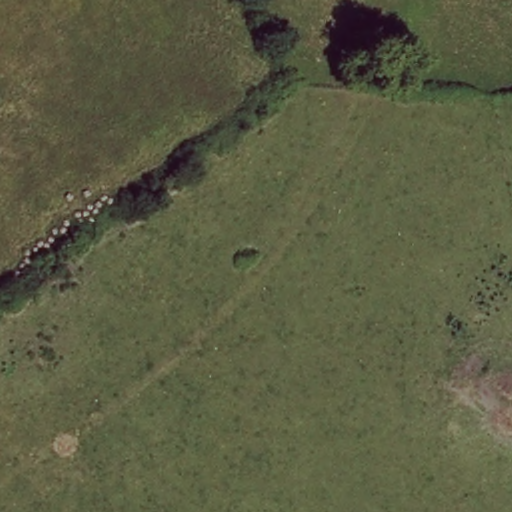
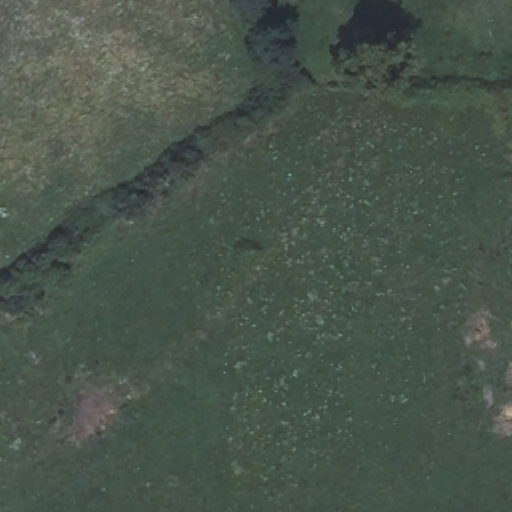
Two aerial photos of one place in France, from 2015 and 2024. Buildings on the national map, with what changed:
[]

